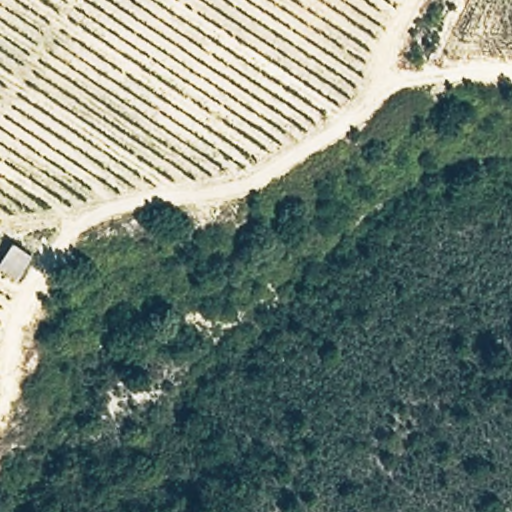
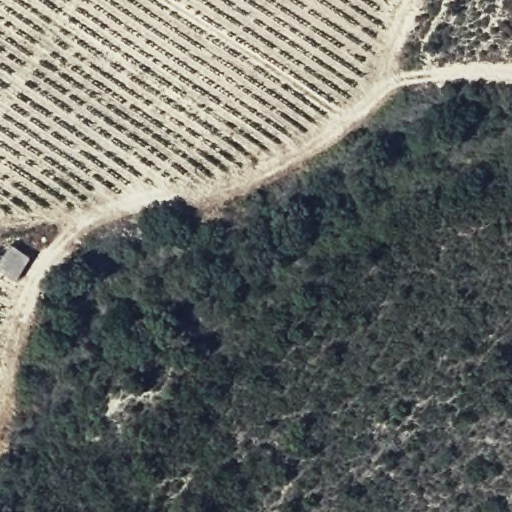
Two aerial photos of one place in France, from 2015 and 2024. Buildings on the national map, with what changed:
unchanged [(13,245),(30,254),(17,272),(1,263),(13,245)]

